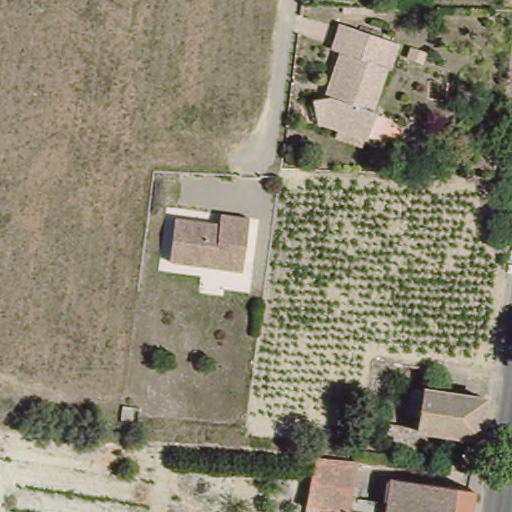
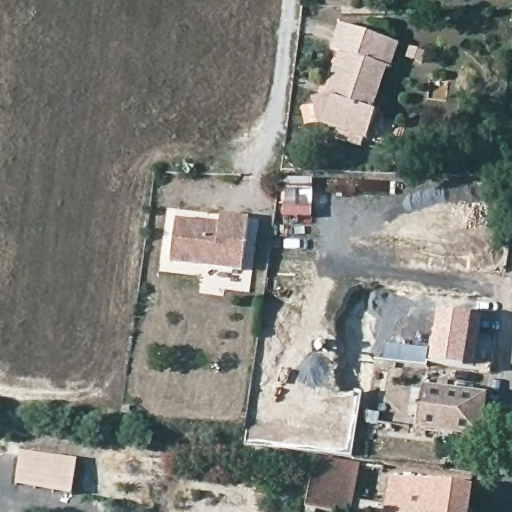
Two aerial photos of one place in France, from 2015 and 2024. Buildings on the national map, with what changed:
unchanged [(340,27),(391,40),(400,43),(393,70),(389,70),(376,112),(381,114),(372,140),(327,126),(318,127),(314,101),(324,100),(337,55),(332,54),(340,27)]
unchanged [(219,223),(221,211),(233,213),(251,215),(244,269),(173,259),(178,217),(219,223)]
unchanged [(508,245),(489,243),(491,227),(509,229),(508,245)]
new [(474,367),(464,365),(429,361),(437,309),(471,314),(481,315),(474,367)]
unchanged [(416,392),(480,398),(474,436),(456,435),(409,429),(416,392)]
new [(18,448),(75,457),(70,493),(13,483),(18,448)]
unchanged [(352,487),(350,512),(304,512),(311,463),(355,467),(352,487)]
unchanged [(380,508),(384,481),(391,482),(472,492),(469,512),(386,512),(387,508),(380,508)]

